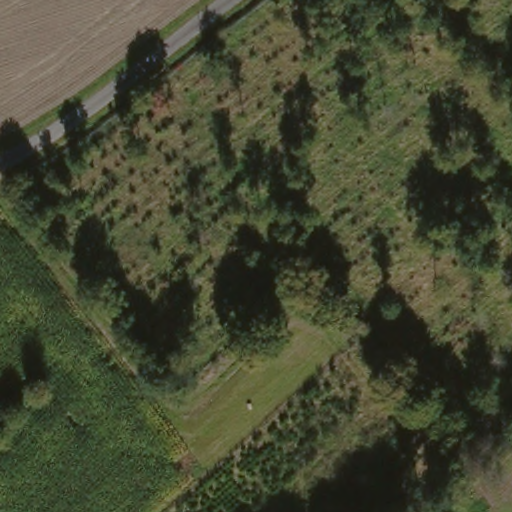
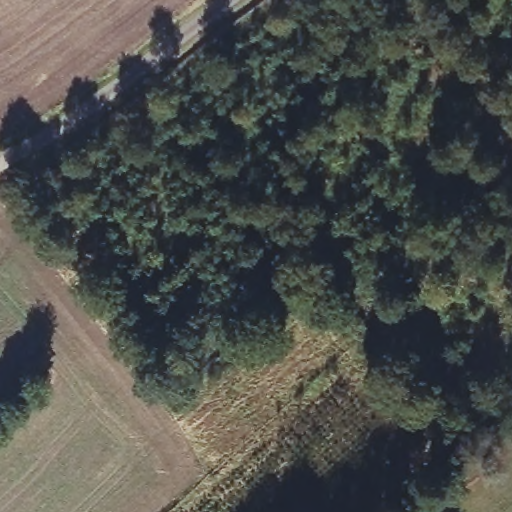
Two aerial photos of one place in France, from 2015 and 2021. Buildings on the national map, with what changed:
[]

